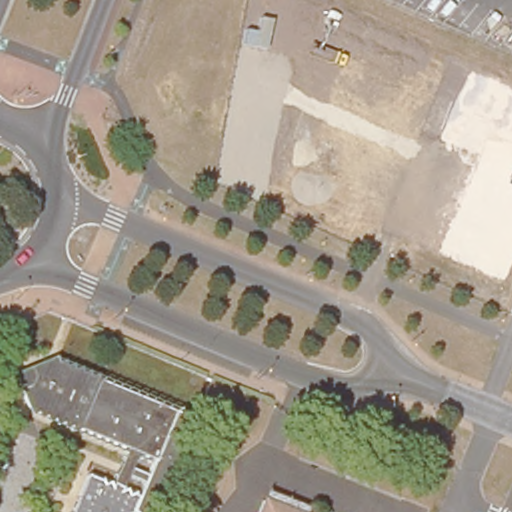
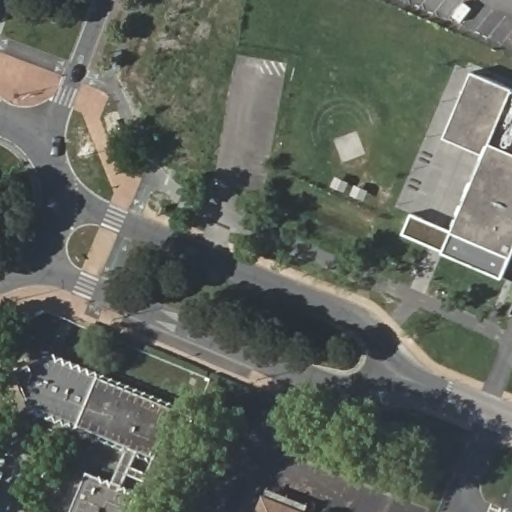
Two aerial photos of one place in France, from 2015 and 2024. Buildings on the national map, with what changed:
new [(444,251),(402,233),(410,214),(452,231),(484,154),(444,137),(471,72),(512,89),(512,253),(502,276),(444,251)]
unchanged [(79,474),(85,476),(106,485),(120,450),(24,409),(9,372),(45,358),(185,416),(145,512),(128,512),(64,512),(79,474)]
unchanged [(262,493),(306,512),(254,512),(262,493)]

